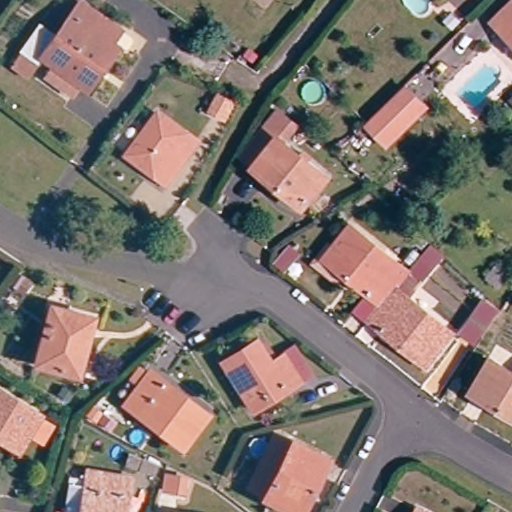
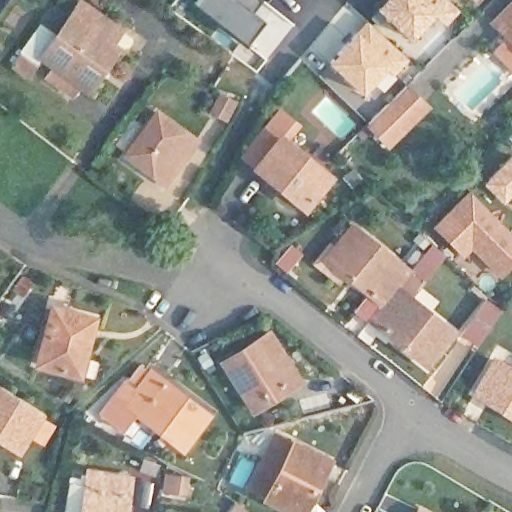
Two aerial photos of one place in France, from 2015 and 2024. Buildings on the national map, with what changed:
unchanged [(27,51),(21,46),(42,16),(53,26),(74,0),(78,0),(111,26),(100,40),(109,46),(94,69),(78,90),(74,87),(66,97),(19,61),(27,51)]
new [(263,20),(245,43),(194,5),(197,0),(261,0),(249,11),(263,20)]
new [(445,24),(434,14),(411,40),(374,7),(381,0),(450,0),(460,10),(445,24)]
new [(346,1),(366,19),(323,65),(325,66),(317,75),(298,57),(346,1)]
unchanged [(512,9),(512,48),(492,29),(512,9)]
new [(408,59),(392,74),(387,69),(362,96),(326,62),(355,30),(366,21),(408,59)]
new [(219,90),(239,100),(226,122),(206,112),(219,90)]
unchanged [(372,130),(408,93),(430,114),(394,151),(372,130)]
unchanged [(301,215),(235,155),(275,106),(298,127),(287,140),(331,176),(301,215)]
unchanged [(182,161),(162,187),(123,157),(153,115),(182,136),(170,152),(182,161)]
new [(512,152),(512,198),(509,195),(501,202),(480,181),(510,150),(512,152)]
new [(492,267),(470,245),(463,251),(465,254),(462,256),(433,227),(468,191),(512,235),(512,245),(510,249),(492,267)]
unchanged [(390,286),(385,292),(381,297),(371,310),(315,263),(341,233),(396,279),(390,286)]
unchanged [(508,276),(500,288),(490,280),(497,268),(508,276)]
unchanged [(416,371),(359,323),(371,310),(381,297),(385,292),(441,340),(416,371)]
unchanged [(460,329),(483,301),(497,315),(475,342),(460,329)]
unchanged [(75,373),(70,372),(36,361),(51,310),(85,318),(76,351),(81,353),(75,373)]
unchanged [(275,392),(271,386),(251,398),(255,403),(242,411),(215,366),(248,345),(262,367),(274,360),(288,383),(275,392)]
unchanged [(466,388),(487,356),(512,372),(512,419),(497,409),(466,388)]
unchanged [(175,446),(125,399),(152,370),(202,417),(175,446)]
unchanged [(40,440),(27,432),(17,450),(0,439),(0,393),(50,423),(40,440)]
unchanged [(290,510),(256,492),(284,435),(326,458),(308,493),(299,512),(293,512),(290,510)]
unchanged [(125,485),(122,512),(72,512),(75,490),(89,492),(90,481),(125,485)]
unchanged [(417,511),(419,512),(417,512),(417,511)]

